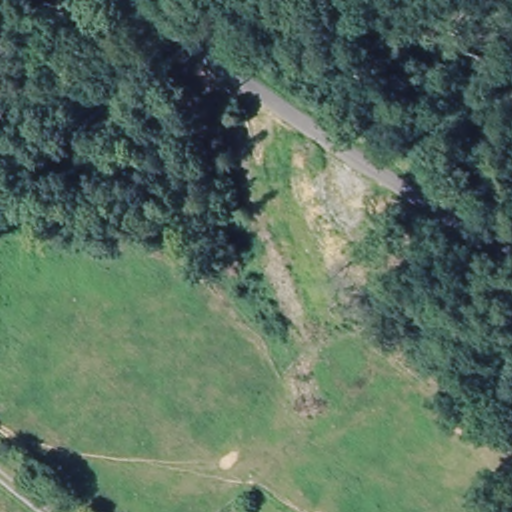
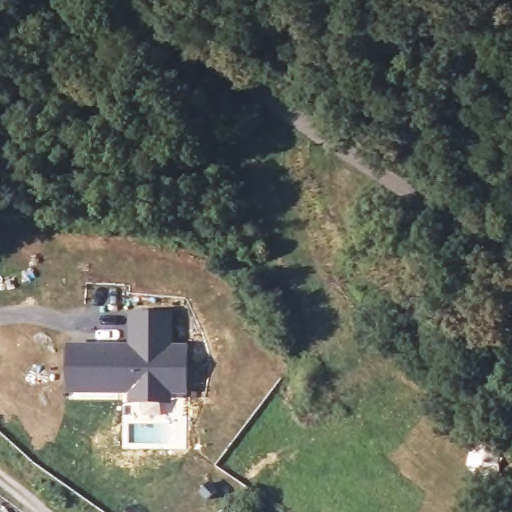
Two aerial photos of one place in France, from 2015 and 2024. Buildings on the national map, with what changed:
new [(134,405),(133,397),(134,395),(88,394),(71,394),(71,384),(71,352),(120,353),(120,356),(133,356),(133,317),(170,317),(170,350),(188,349),(188,376),(188,394),(170,394),(170,397),(170,404),(134,405)]

